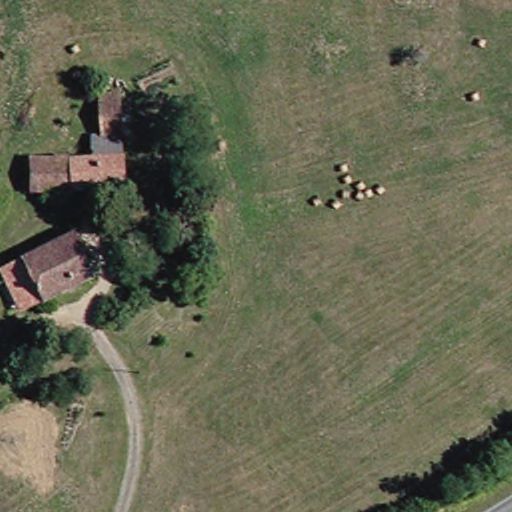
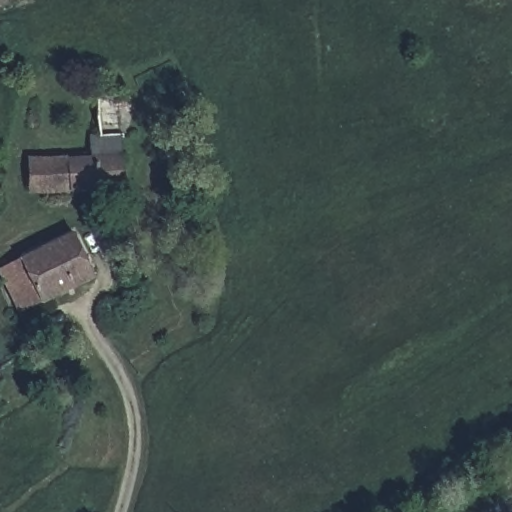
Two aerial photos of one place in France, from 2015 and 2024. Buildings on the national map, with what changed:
unchanged [(129,182),(36,190),(34,153),(102,151),(102,94),(127,91),(129,182)]
unchanged [(26,276),(21,267),(56,247),(50,237),(67,227),(96,277),(44,307),(22,320),(6,289),(26,276)]

